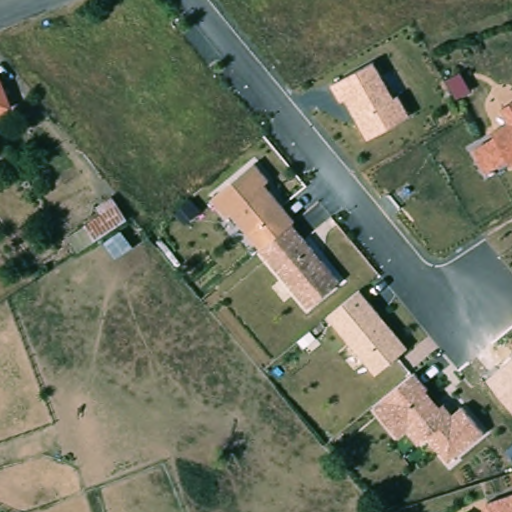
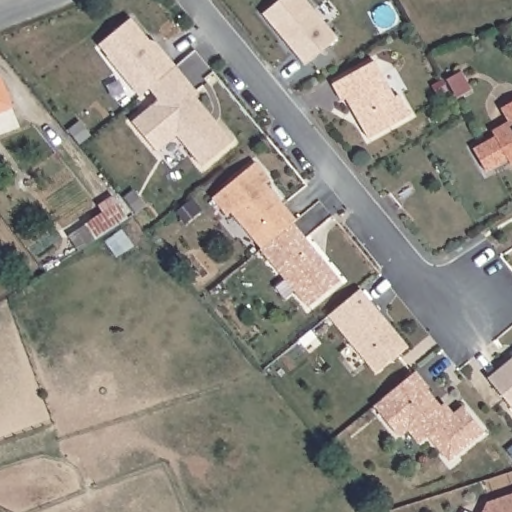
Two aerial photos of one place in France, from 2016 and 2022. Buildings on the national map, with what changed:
new [(261,14),(279,0),(306,0),(337,37),(303,64),(261,14)]
new [(137,95),(97,45),(131,18),(149,40),(156,42),(175,63),(169,67),(143,90),(137,95)]
unchanged [(393,95),(399,92),(411,117),(369,139),(345,99),(340,101),(332,84),(375,60),(393,95)]
new [(152,101),(143,90),(169,67),(191,93),(184,98),(207,125),(210,123),(227,143),(197,168),(171,137),(151,153),(126,123),(152,101)]
unchanged [(0,111),(0,84),(10,107),(0,111)]
unchanged [(494,131),(508,125),(500,108),(512,102),(512,166),(494,131)]
unchanged [(473,149),(496,135),(511,163),(486,173),(473,149)]
unchanged [(255,161),(270,180),(265,184),(295,221),(291,224),(340,281),(309,309),(260,251),(262,249),(232,213),(226,218),(211,200),(217,195),(250,166),(255,161)]
unchanged [(110,203),(120,219),(88,240),(78,224),(110,203)]
unchanged [(409,348),(376,376),(327,316),(360,289),(409,348)]
unchanged [(487,379),(512,359),(512,408),(487,379)]
unchanged [(443,401),(453,414),(462,406),(484,432),(449,464),(428,439),(419,447),(408,433),(397,442),(372,409),(382,401),(414,373),(439,404),(443,401)]
unchanged [(483,512),(488,502),(512,494),(512,512),(483,512)]

